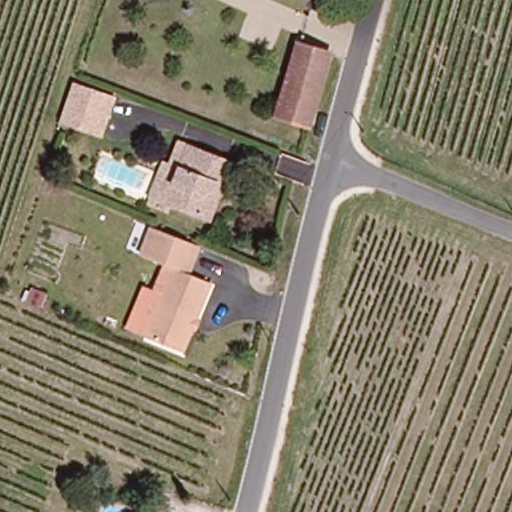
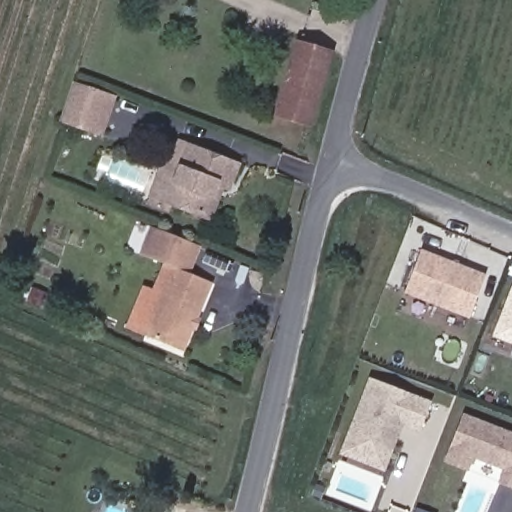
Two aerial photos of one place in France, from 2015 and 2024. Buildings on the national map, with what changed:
unchanged [(274,112),(292,41),(325,50),(307,123),(274,112)]
unchanged [(117,97),(106,130),(64,113),(77,81),(117,97)]
unchanged [(202,209),(161,194),(144,189),(156,158),(164,160),(171,136),(180,139),(232,158),(223,182),(218,180),(207,212),(202,209)]
demolished [(134,194),(97,177),(105,155),(142,172),(134,194)]
unchanged [(190,272),(213,281),(187,351),(152,337),(178,267),(166,262),(145,255),(155,226),(201,244),(190,272)]
new [(463,328),(430,315),(435,304),(403,292),(421,248),(486,274),(463,328)]
unchanged [(129,329),(145,286),(156,290),(166,262),(178,267),(152,337),(129,329)]
new [(493,335),(512,286),(512,342),(493,335)]
new [(420,432),(403,425),(385,472),(341,454),(371,377),(432,402),(420,432)]
new [(497,483),(502,469),(475,459),(470,472),(445,462),(463,413),(512,433),(512,489),(497,483)]

